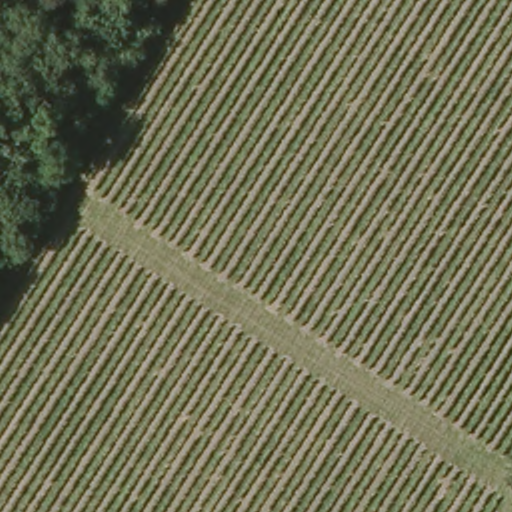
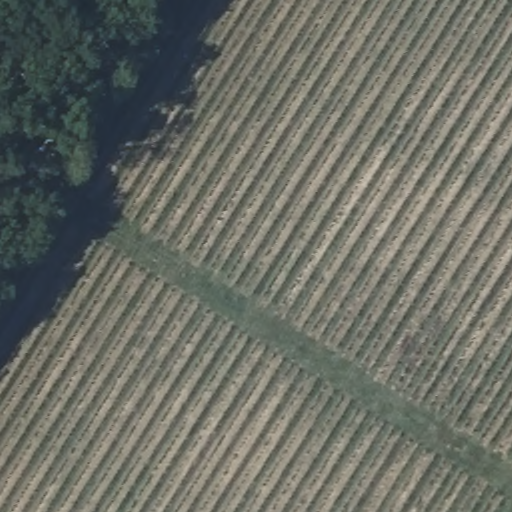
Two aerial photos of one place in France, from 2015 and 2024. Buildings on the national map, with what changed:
[]

